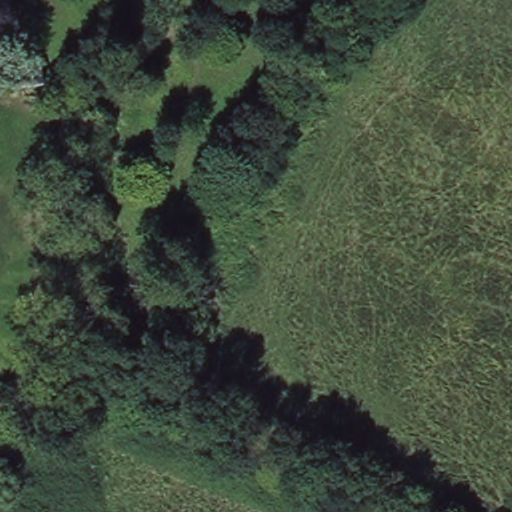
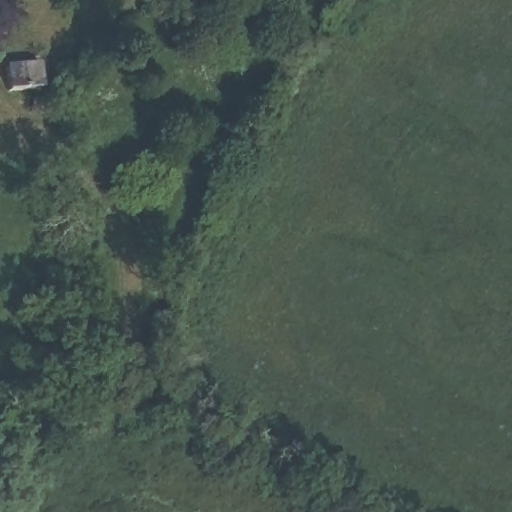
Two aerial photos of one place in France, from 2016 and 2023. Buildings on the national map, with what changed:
unchanged [(41,86),(10,89),(8,73),(40,71),(41,86)]

